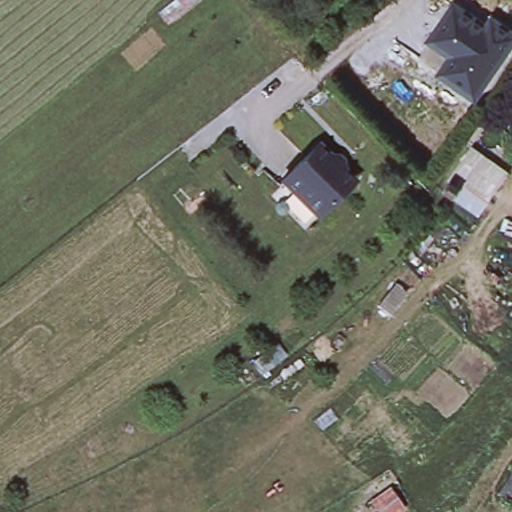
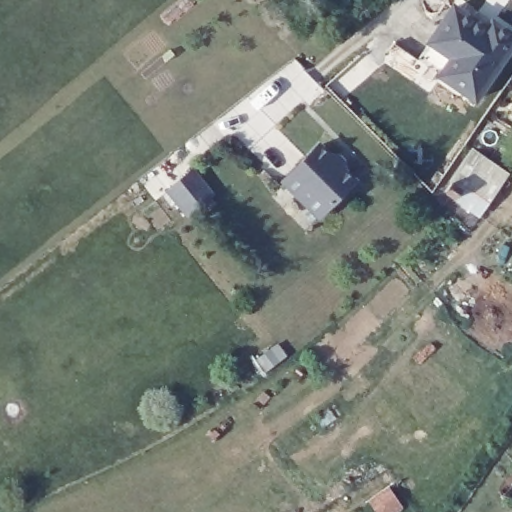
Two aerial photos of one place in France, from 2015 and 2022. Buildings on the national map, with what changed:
unchanged [(448,57),(426,44),(454,0),(487,22),(491,16),(512,31),(512,53),(477,105),(437,76),(448,57)]
unchanged [(330,156),(338,155),(344,161),(344,170),(355,180),(320,216),(284,180),(320,145),(330,156)]
unchanged [(442,190),(473,147),(512,176),(512,177),(479,217),(442,190)]
new [(216,195),(187,218),(164,190),(193,167),(216,195)]
unchanged [(510,503),(498,491),(512,470),(512,500),(510,503)]

